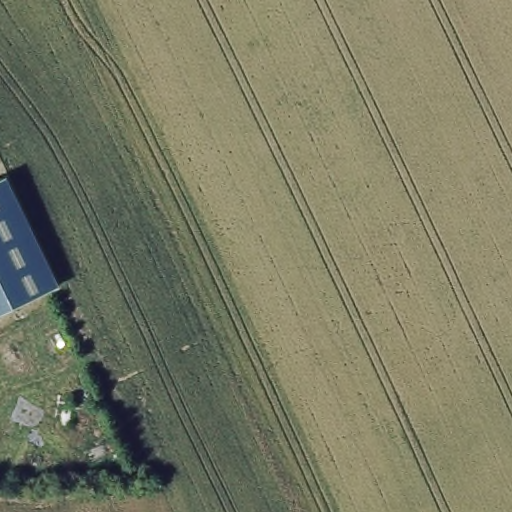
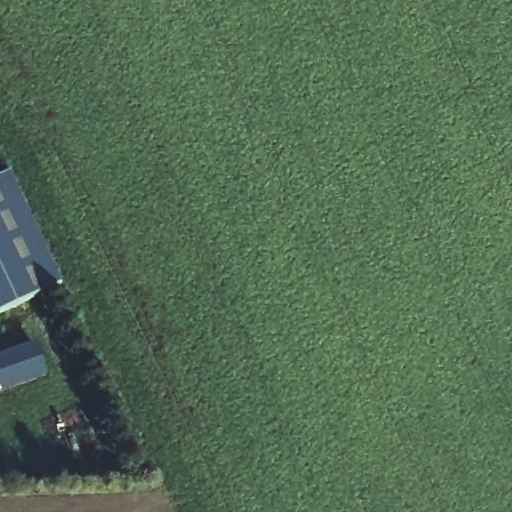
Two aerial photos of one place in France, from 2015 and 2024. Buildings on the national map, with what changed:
unchanged [(2,178),(52,285),(0,310),(0,178),(2,178)]
new [(34,343),(46,375),(2,391),(0,385),(0,355),(34,343)]

